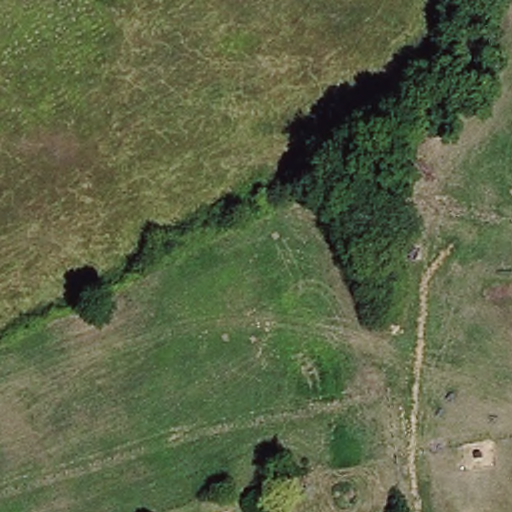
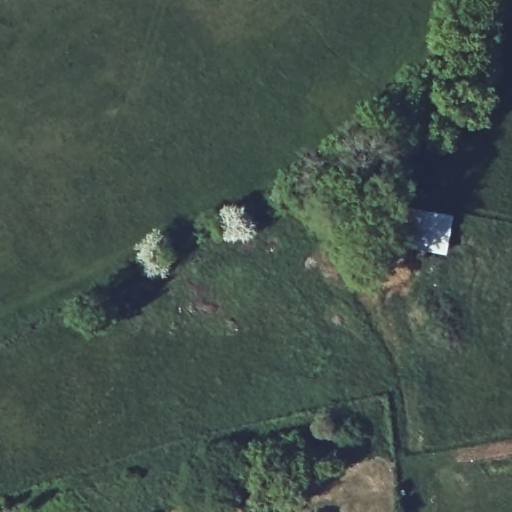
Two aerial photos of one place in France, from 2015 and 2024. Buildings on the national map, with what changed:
new [(453,213),(448,253),(408,248),(412,218),(401,217),(402,207),(453,213)]

